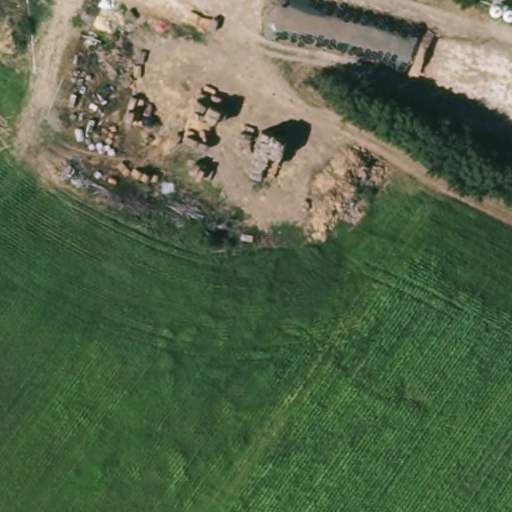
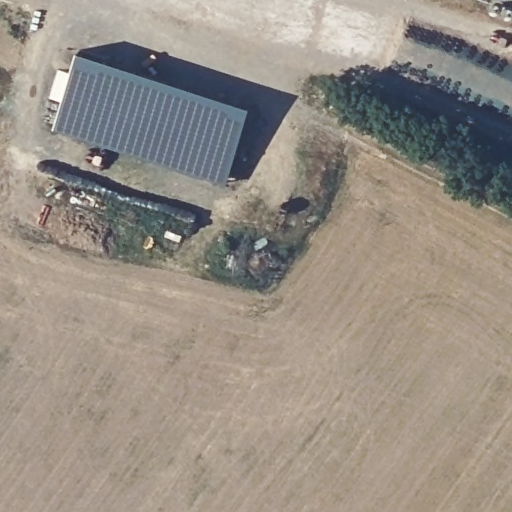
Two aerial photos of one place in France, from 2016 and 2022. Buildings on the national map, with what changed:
new [(229,184),(55,128),(81,49),(254,104),(229,184)]

